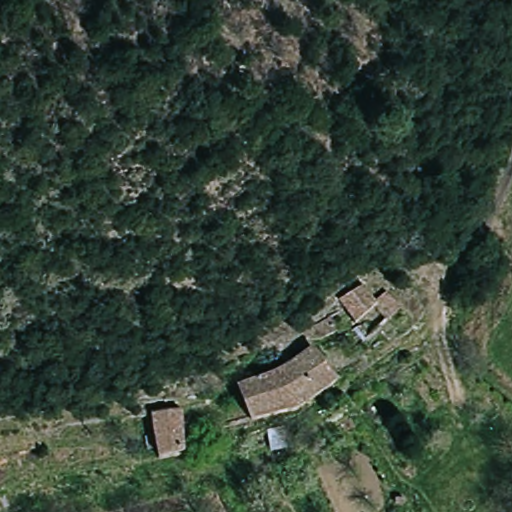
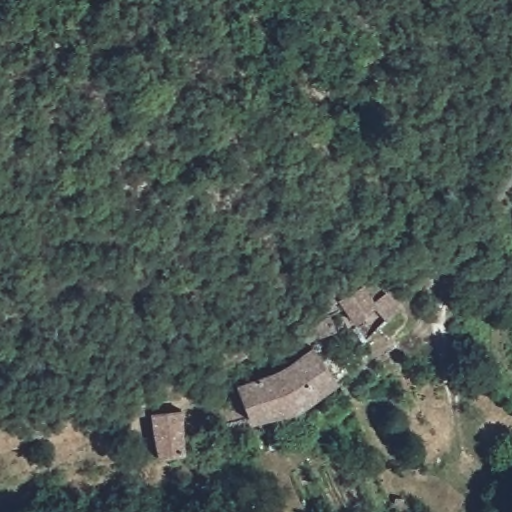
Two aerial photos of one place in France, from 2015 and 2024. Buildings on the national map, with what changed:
unchanged [(363,284),(381,306),(356,324),(341,302),(363,284)]
unchanged [(335,382),(299,409),(249,424),(236,395),(248,388),(257,384),(281,373),(291,366),(311,351),(335,382)]
unchanged [(182,409),(190,454),(162,459),(152,415),(182,409)]

